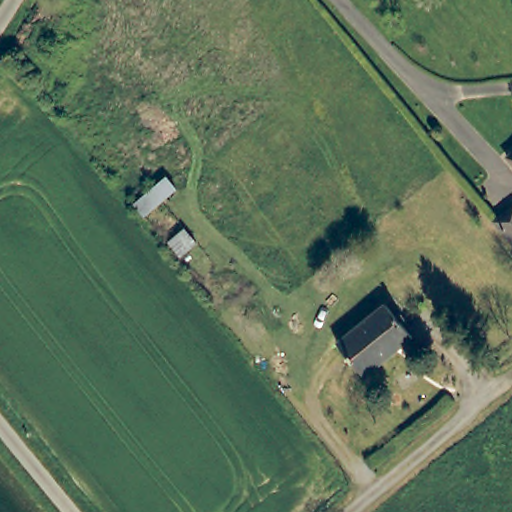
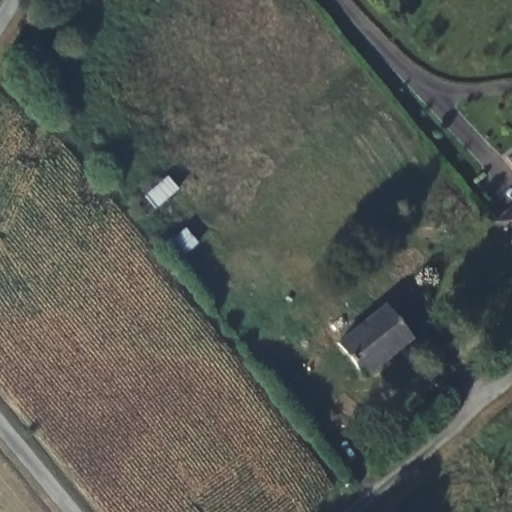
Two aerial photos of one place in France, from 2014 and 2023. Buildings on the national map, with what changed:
unchanged [(512,157),(512,159),(511,158),(512,157)]
unchanged [(512,243),(495,222),(512,208),(512,243)]
unchanged [(383,308),(410,340),(363,380),(335,348),(383,308)]

